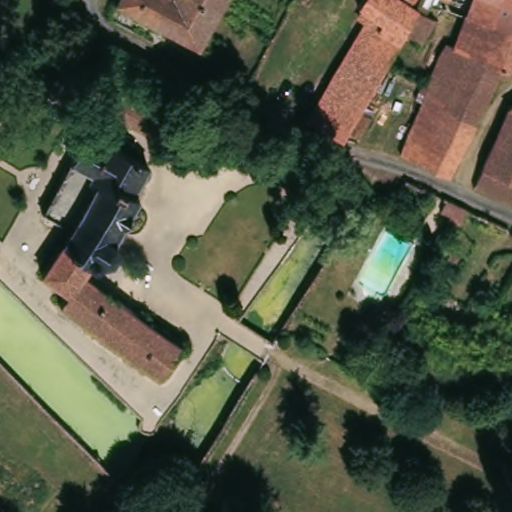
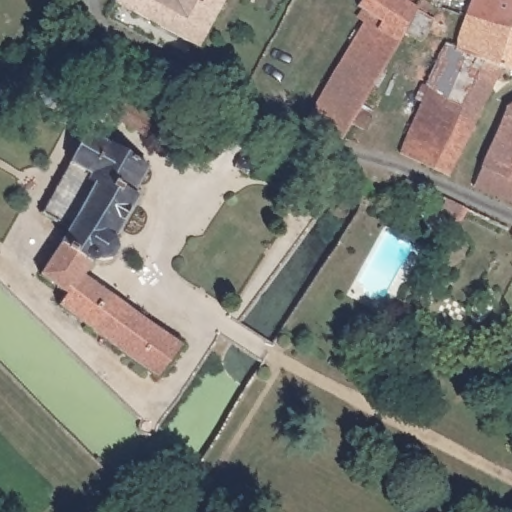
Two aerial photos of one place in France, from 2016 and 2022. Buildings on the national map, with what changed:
unchanged [(206,23),(193,48),(145,22),(110,3),(111,0),(219,0),(206,23)]
unchanged [(346,125),(337,141),(301,123),(332,69),(363,14),(353,7),(357,0),(408,0),(406,3),(413,8),(417,1),(425,6),(435,11),(430,20),(416,43),(399,33),(392,45),(380,66),(353,114),(363,121),(357,131),(346,125)]
unchanged [(440,2),(436,0),(442,0),(440,2)]
unchanged [(468,0),(512,0),(512,34),(460,18),(468,0)]
unchanged [(495,69),(470,123),(437,107),(442,97),(421,87),(440,44),(450,48),(460,18),(512,34),(512,70),(510,75),(495,69)]
unchanged [(393,155),(415,102),(410,100),(416,84),(421,87),(442,97),(437,107),(470,123),(443,177),(393,155)]
unchanged [(109,94),(151,111),(144,128),(102,111),(109,94)]
unchanged [(469,188),(483,155),(503,108),(512,103),(512,207),(502,203),(469,188)]
unchanged [(109,345),(52,305),(61,293),(36,276),(64,232),(35,215),(60,170),(80,133),(110,151),(111,149),(142,167),(128,193),(134,197),(109,241),(110,243),(112,251),(107,260),(96,263),(90,259),(79,277),(120,306),(176,346),(155,377),(109,345)]
unchanged [(245,157),(247,159),(249,160),(250,168),(246,175),(235,169),(239,158),(245,157)]

